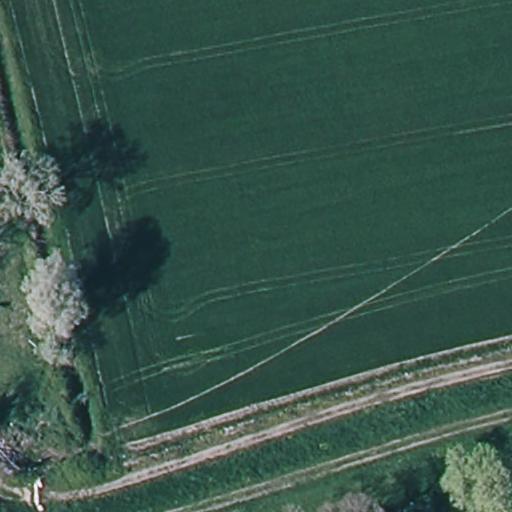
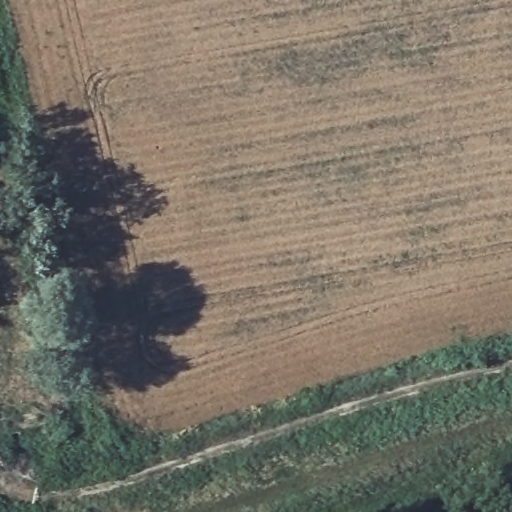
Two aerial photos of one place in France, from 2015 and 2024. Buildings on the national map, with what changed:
[]

